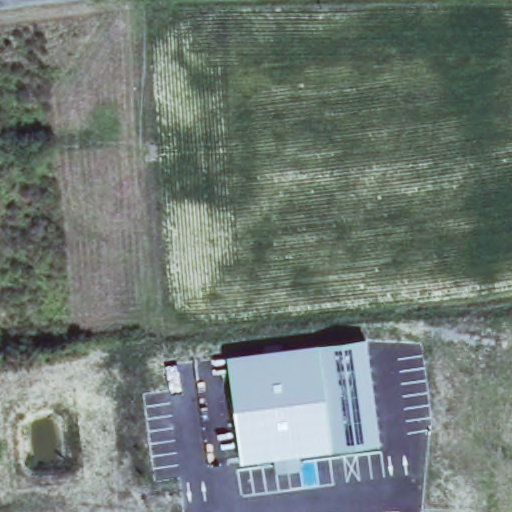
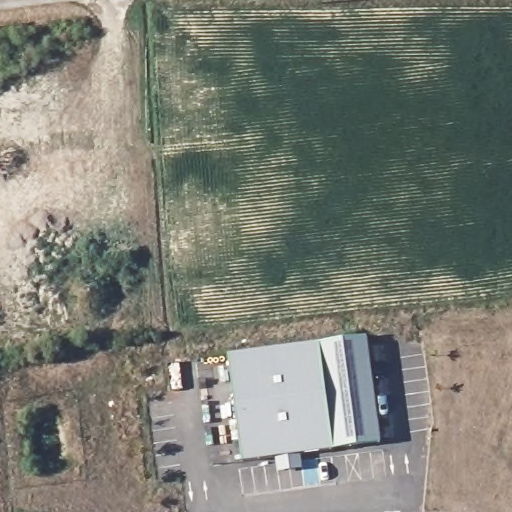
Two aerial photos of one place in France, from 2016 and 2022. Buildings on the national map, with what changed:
unchanged [(228,357),(368,338),(382,444),(242,464),(228,357)]

